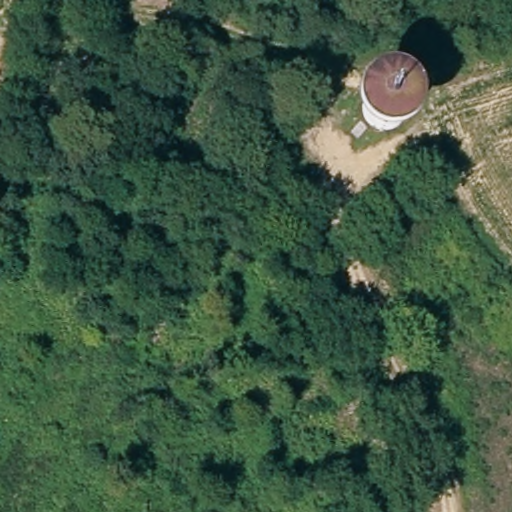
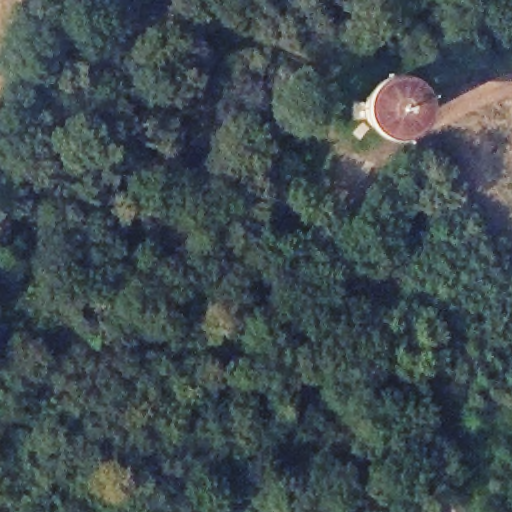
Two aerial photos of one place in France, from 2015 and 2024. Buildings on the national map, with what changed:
unchanged [(425,151),(427,160),(405,168),(402,159),(425,151)]

